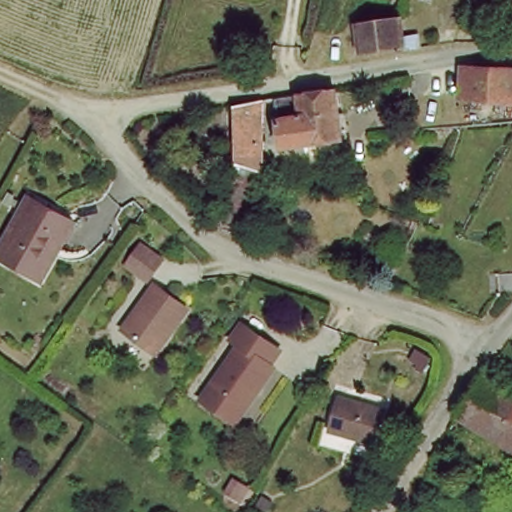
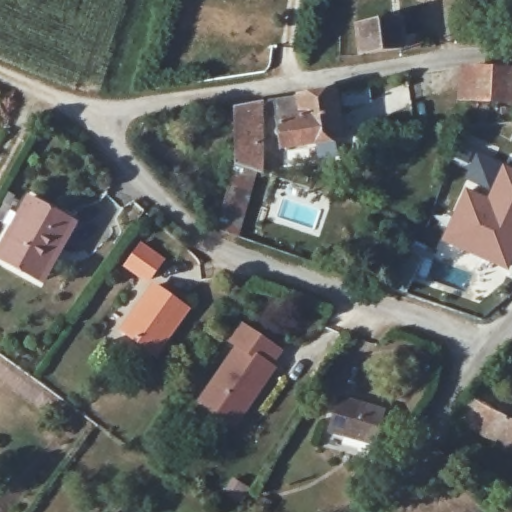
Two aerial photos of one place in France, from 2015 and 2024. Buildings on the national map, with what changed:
unchanged [(432,4),(415,0),(433,0),(432,4)]
unchanged [(367,55),(362,28),(402,20),(407,48),(367,55)]
unchanged [(447,117),(448,97),(472,94),(475,58),(512,60),(512,93),(505,92),(504,113),(470,116),(452,117),(447,117)]
unchanged [(280,101),(332,92),(340,141),(280,151),(275,102),(280,101)]
unchanged [(232,173),(233,122),(233,116),(259,110),(260,182),(255,180),(232,173)]
new [(465,184),(485,194),(501,162),(512,167),(512,259),(507,271),(438,241),(465,184)]
unchanged [(238,235),(215,227),(230,172),(232,173),(255,180),(238,235)]
unchanged [(0,255),(0,251),(30,197),(77,223),(67,243),(46,280),(35,273),(0,255)]
new [(395,242),(425,258),(407,292),(377,277),(395,242)]
unchanged [(147,287),(125,274),(140,252),(162,266),(147,287)]
unchanged [(123,339),(155,293),(187,316),(156,362),(123,339)]
unchanged [(241,346),(234,341),(245,325),(282,350),(273,366),(278,370),(262,397),(255,392),(237,420),(205,400),(241,346)]
unchanged [(458,419),(482,383),(512,397),(512,453),(458,419)]
unchanged [(337,398),(382,410),(375,441),(330,430),(337,398)]
unchanged [(432,458),(437,450),(458,465),(453,473),(432,458)]
unchanged [(227,482),(235,467),(245,473),(236,488),(227,482)]
unchanged [(258,493),(263,485),(273,491),(268,499),(258,493)]

